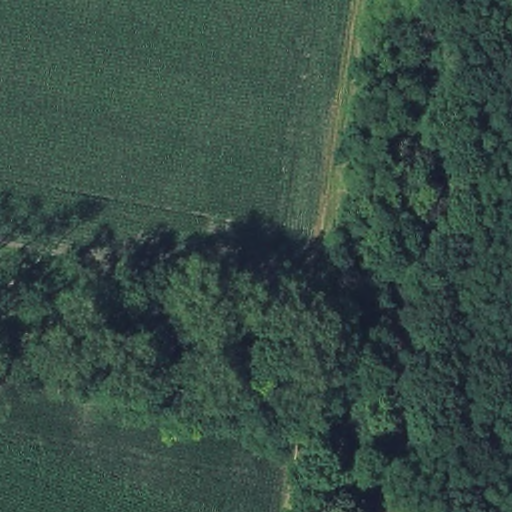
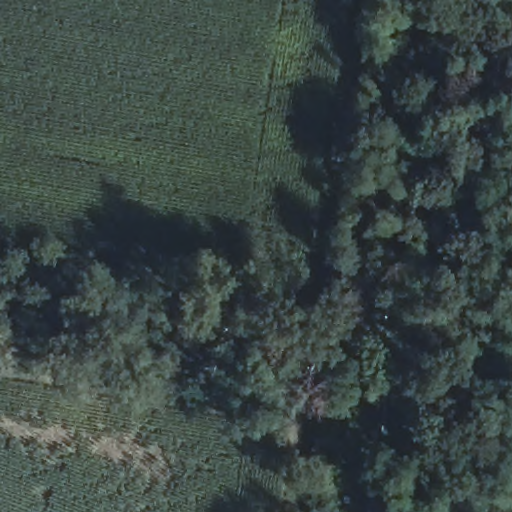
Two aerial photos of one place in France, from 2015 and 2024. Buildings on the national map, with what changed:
unchanged [(405,491),(405,512),(354,512),(354,490),(405,491)]

